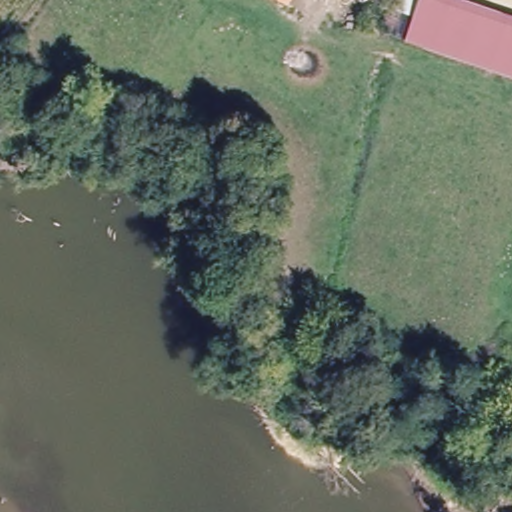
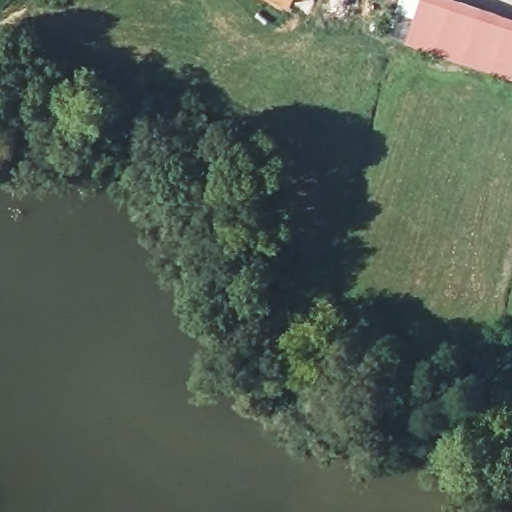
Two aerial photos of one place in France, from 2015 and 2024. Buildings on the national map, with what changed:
unchanged [(295,5),(285,0),(297,0),(295,5)]
unchanged [(512,13),(512,77),(406,40),(423,0),(471,0),(512,13)]

